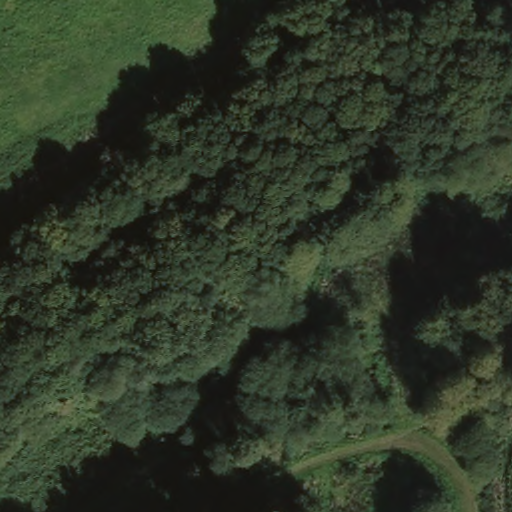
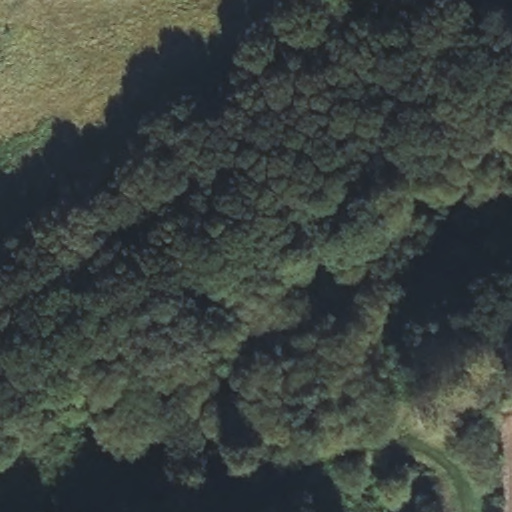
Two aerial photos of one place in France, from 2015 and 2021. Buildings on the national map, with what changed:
unchanged [(411,291),(418,303),(409,309),(402,297),(411,291)]

